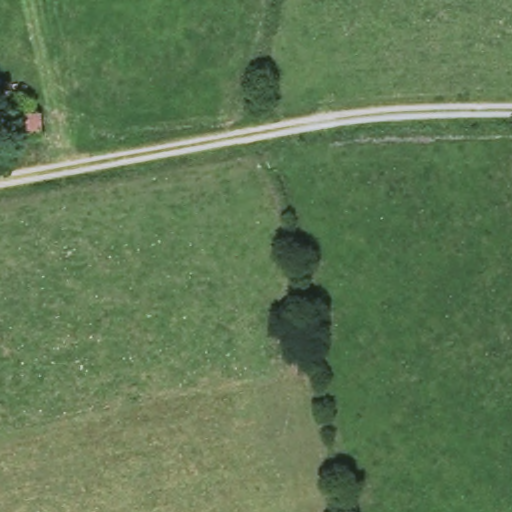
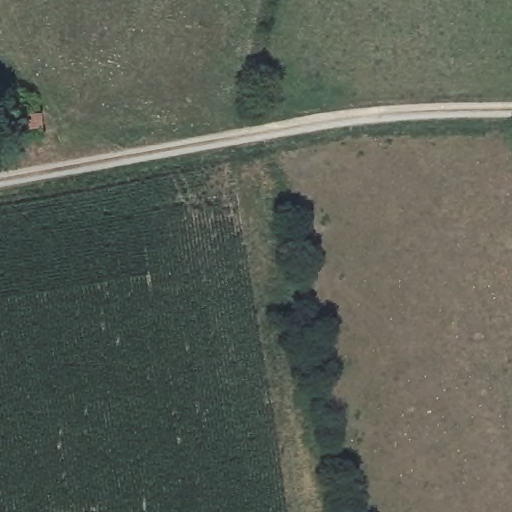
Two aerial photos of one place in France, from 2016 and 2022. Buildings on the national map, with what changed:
unchanged [(43,131),(11,136),(8,114),(38,110),(43,131)]

